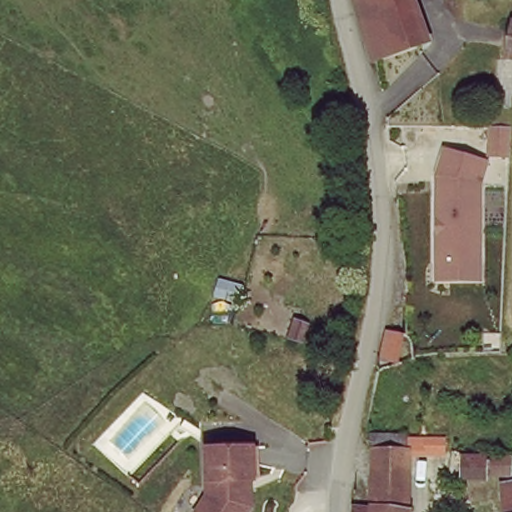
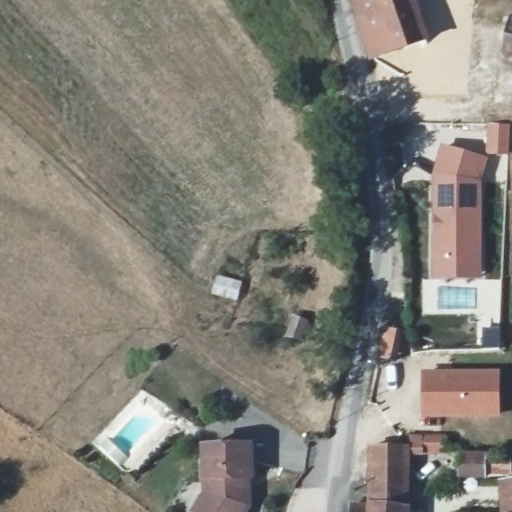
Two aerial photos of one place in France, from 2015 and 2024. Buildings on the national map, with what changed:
unchanged [(433,36),(396,57),(392,60),(365,1),(367,0),(418,0),(433,36)]
unchanged [(512,20),(512,56),(507,55),(510,20),(512,20)]
unchanged [(439,281),(439,181),(449,152),(490,162),(487,184),(487,280),(439,281)]
unchanged [(405,336),(421,337),(421,351),(420,361),(404,361),(405,336)]
new [(424,370),(499,370),(501,416),(424,417),(424,370)]
unchanged [(452,447),(416,446),(417,431),(452,432),(452,447)]
unchanged [(382,445),(416,446),(409,512),(372,512),(373,507),(382,445)]
unchanged [(463,447),(510,448),(509,468),(460,467),(463,447)]
unchanged [(266,481),(257,481),(258,502),(251,512),(211,512),(221,496),(220,450),(266,450),(266,481)]
unchanged [(512,477),(512,512),(499,512),(496,478),(512,477)]
unchanged [(373,507),(372,512),(357,512),(359,505),(373,507)]

